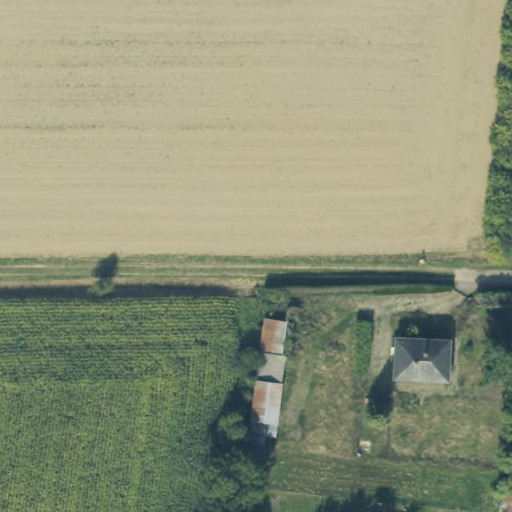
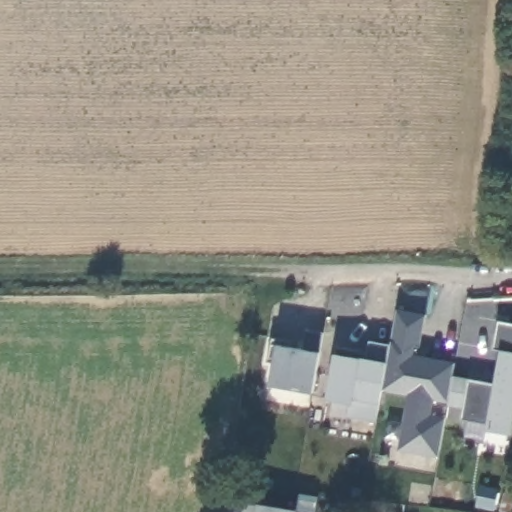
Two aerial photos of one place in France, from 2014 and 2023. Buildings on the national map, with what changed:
new [(449,406),(433,401),(430,415),(445,418),(437,459),(398,451),(408,397),(381,393),(386,363),(389,345),(397,311),(425,316),(419,348),(415,347),(413,356),(454,364),(452,376),(449,406)]
new [(493,383),(500,351),(493,350),(498,322),(512,324),(512,433),(511,436),(486,431),(487,425),(462,421),(464,409),(449,406),(452,376),(493,383)]
new [(270,386),(275,346),(301,350),(305,331),(322,333),(319,353),(313,394),(270,386)]
demolished [(291,337),(286,363),(260,359),(265,333),(291,337)]
demolished [(397,340),(450,342),(447,381),(395,379),(397,340)]
new [(348,417),(351,404),(327,400),(332,356),(335,348),(366,353),(370,342),(389,345),(386,363),(380,403),(376,423),(348,417)]
new [(245,506),(255,507),(256,504),(298,511),(298,512),(243,512),(245,506)]

